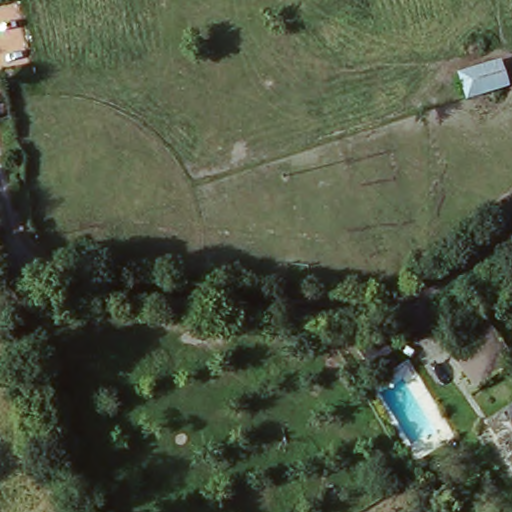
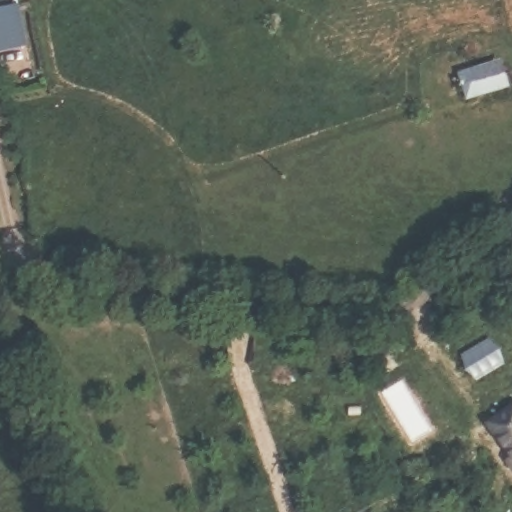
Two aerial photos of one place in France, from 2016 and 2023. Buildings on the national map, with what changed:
new [(20,6),(27,49),(0,54),(0,11),(20,6)]
unchanged [(503,61),(511,90),(463,105),(454,75),(503,61)]
unchanged [(512,365),(471,393),(446,353),(487,326),(512,365)]
unchanged [(512,462),(488,430),(511,415),(512,416),(512,462)]

